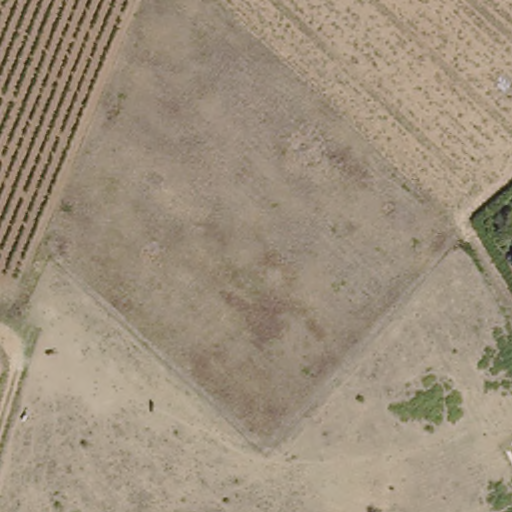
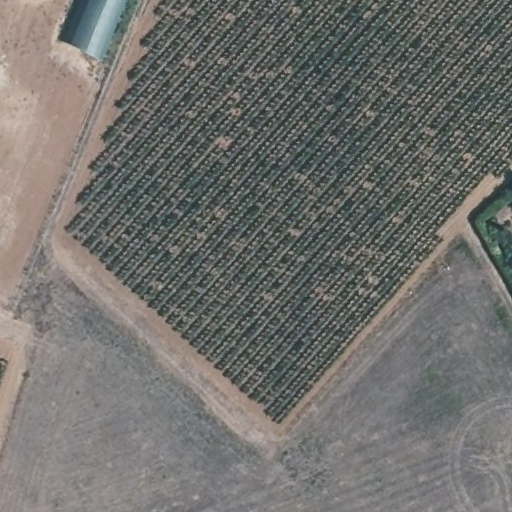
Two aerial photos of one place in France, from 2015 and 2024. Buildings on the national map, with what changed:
new [(66,42),(82,0),(123,0),(99,60),(66,42)]

